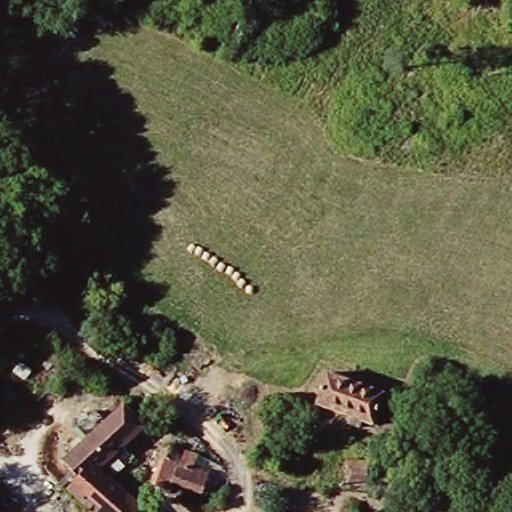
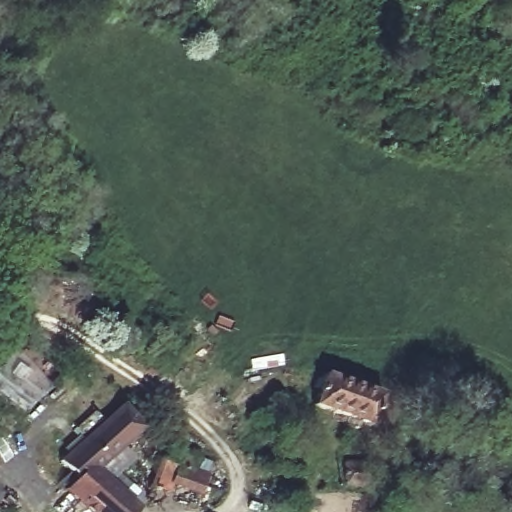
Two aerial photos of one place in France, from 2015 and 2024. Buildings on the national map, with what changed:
unchanged [(370,422),(342,412),(315,402),(326,370),(385,391),(370,422)]
unchanged [(77,431),(95,411),(105,421),(125,405),(145,427),(106,462),(100,457),(92,465),(140,510),(137,512),(95,512),(68,489),(81,473),(66,456),(85,438),(77,431)]
unchanged [(157,452),(167,424),(185,430),(178,446),(193,452),(190,463),(204,469),(195,489),(169,478),(165,486),(149,479),(160,453),(157,452)]
unchanged [(375,461),(375,486),(350,487),(350,462),(375,461)]

